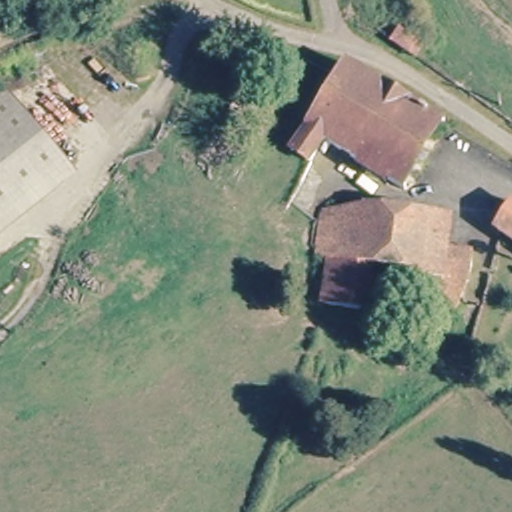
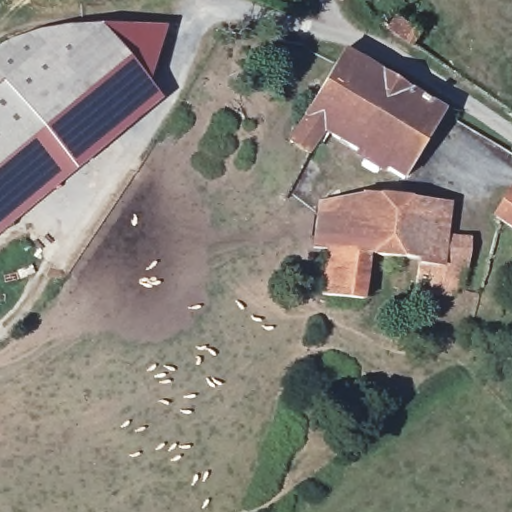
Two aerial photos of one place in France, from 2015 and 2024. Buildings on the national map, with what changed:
unchanged [(413,47),(384,28),(400,9),(425,32),(413,47)]
new [(60,153),(0,85),(0,45),(10,38),(38,29),(68,25),(102,24),(164,26),(149,84),(162,100),(73,169),(60,153)]
unchanged [(444,104),(405,171),(325,131),(312,153),(292,143),(306,121),(299,116),(338,46),(444,104)]
unchanged [(0,208),(0,85),(60,153),(0,208)]
unchanged [(0,235),(0,208),(60,153),(73,169),(0,235)]
unchanged [(364,195),(364,254),(372,254),(370,293),(331,293),(332,246),(318,244),(321,198),(364,195)]
unchanged [(364,254),(364,195),(446,196),(446,245),(476,249),(465,277),(460,293),(419,291),(420,256),(372,254),(364,254)]
unchanged [(506,218),(512,210),(512,222),(506,218)]

